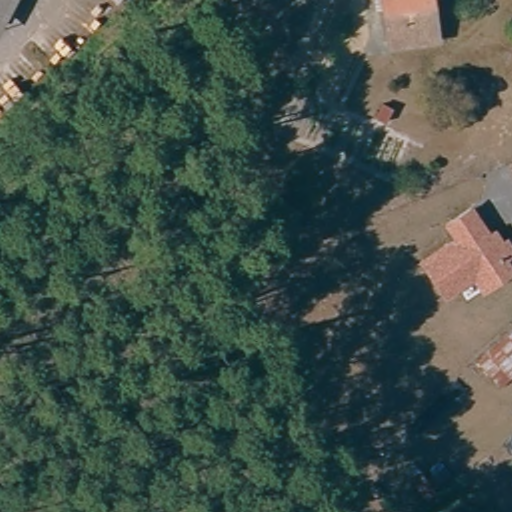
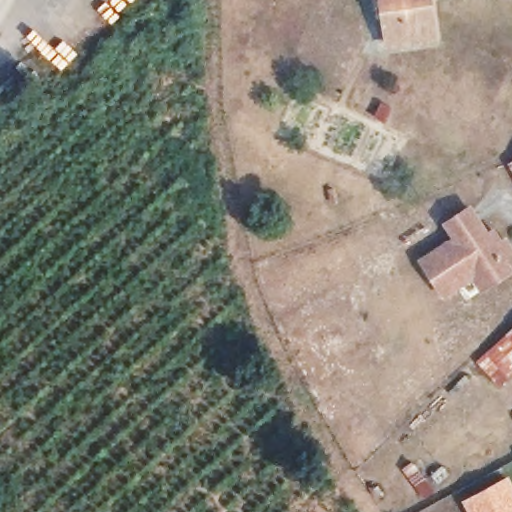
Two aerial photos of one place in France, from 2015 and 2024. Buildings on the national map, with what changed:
unchanged [(0,27),(0,0),(13,0),(0,27)]
unchanged [(437,33),(392,37),(386,2),(375,2),(374,0),(432,0),(437,33)]
unchanged [(510,174),(512,172),(512,179),(510,174)]
unchanged [(492,246),(501,258),(505,256),(512,267),(508,269),(502,273),(511,285),(482,304),(473,290),(444,310),(422,275),(455,253),(446,238),(468,223),(477,237),(486,250),(492,246)]
unchanged [(512,341),(512,377),(496,356),(512,341)]
new [(468,512),(461,499),(508,474),(512,482),(512,512),(468,512)]

